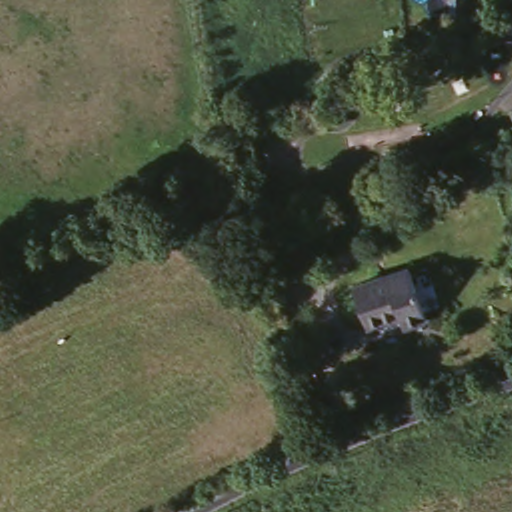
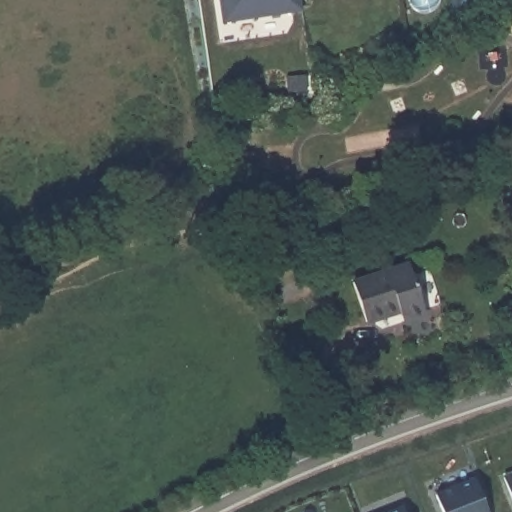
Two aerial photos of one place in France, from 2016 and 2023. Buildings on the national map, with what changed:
new [(219,0),(301,0),(303,13),(223,25),(219,0)]
unchanged [(407,260),(426,321),(398,329),(394,313),(363,324),(349,280),(407,260)]
new [(503,481),(512,477),(512,504),(503,481)]
new [(444,512),(442,505),(482,487),(491,512),(444,512)]

